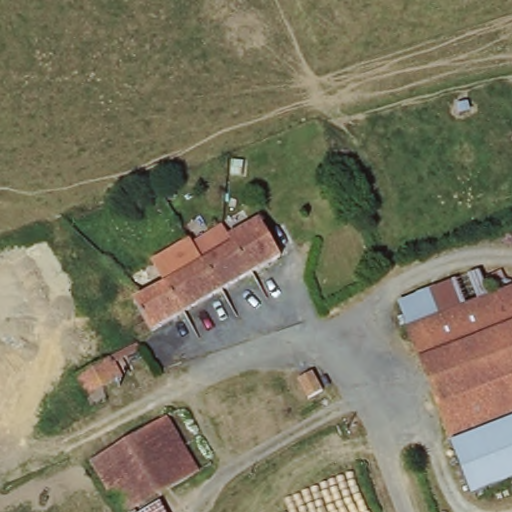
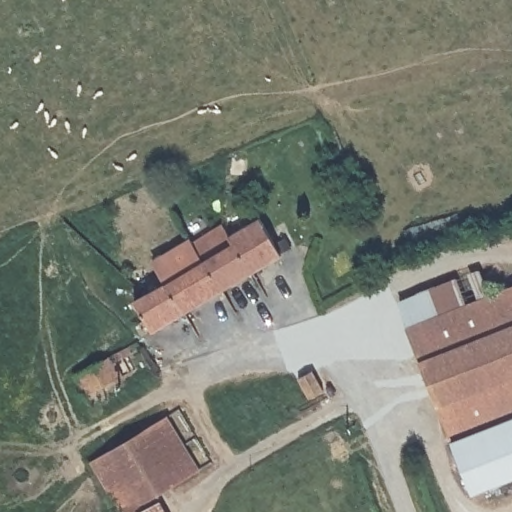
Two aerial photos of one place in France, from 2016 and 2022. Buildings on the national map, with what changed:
unchanged [(202,244),(240,222),(246,233),(273,219),(279,230),(312,212),(324,235),(156,327),(140,298),(172,280),(165,263),(160,256),(178,247),(197,237),(202,244)]
unchanged [(491,296),(411,328),(399,298),(480,267),(491,296)]
unchanged [(512,288),(512,477),(476,491),(454,436),(411,328),(491,296),(512,288)]
unchanged [(123,360),(146,347),(150,355),(127,367),(132,378),(96,398),(94,392),(87,378),(122,358),(123,360)]
unchanged [(318,358),(326,377),(311,384),(303,366),(318,358)]
unchanged [(175,417),(204,469),(166,492),(160,496),(136,510),(134,512),(122,512),(95,464),(175,417)]
unchanged [(165,504),(170,512),(151,512),(165,504)]

